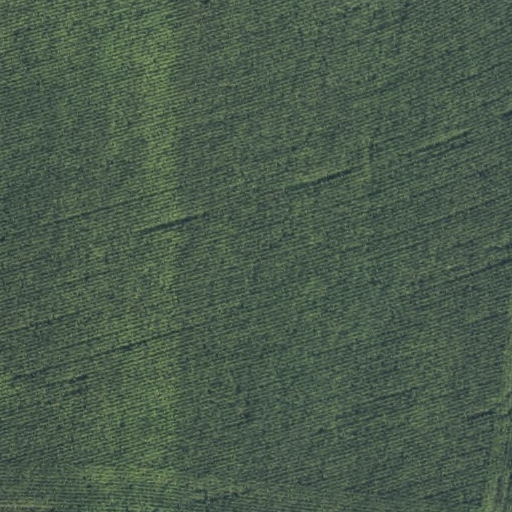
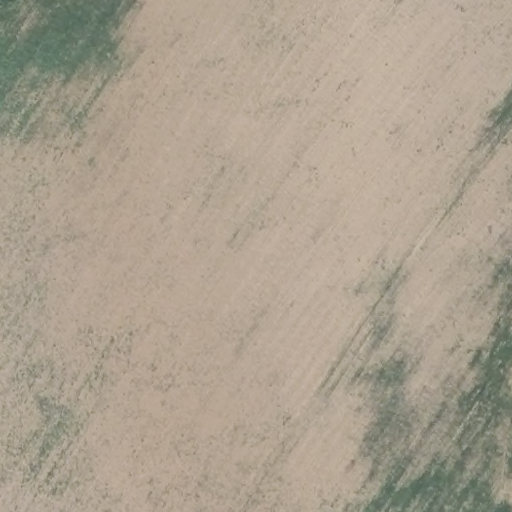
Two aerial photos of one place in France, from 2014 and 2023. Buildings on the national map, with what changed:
[]

